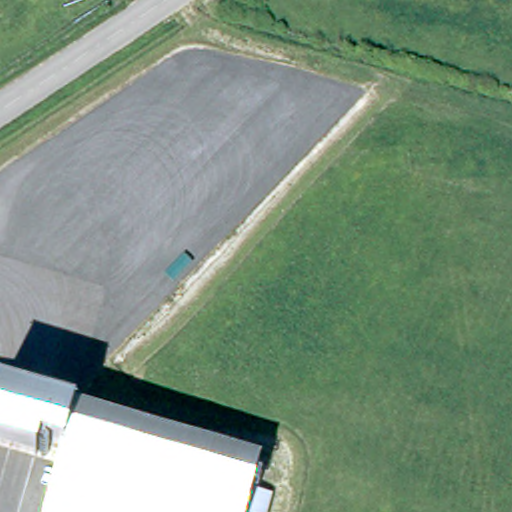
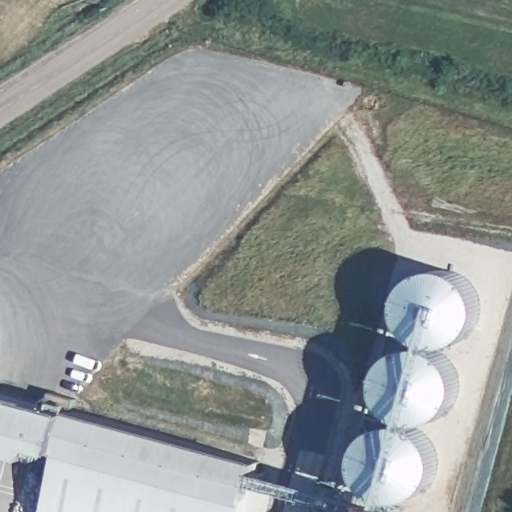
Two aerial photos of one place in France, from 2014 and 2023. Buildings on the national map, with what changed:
new [(373,492),(366,486),(361,473),(361,461),(364,445),(373,433),(384,426),(399,423),(399,419),(393,413),(387,405),(382,392),(382,380),(387,366),(394,356),(405,349),(416,346),(418,340),(411,333),(405,322),(403,310),(404,297),(411,282),(439,268),(449,269),(463,273),(473,283),(479,293),(483,305),(482,317),(477,327),(469,336),(459,343),(449,347),(447,355),(454,364),(459,377),(461,387),(457,402),(449,412),(442,419),(434,423),(426,425),(424,432),(430,439),(436,451),(438,465),(436,477),(429,488),(420,498),(408,502),(402,502),(381,500),(373,492)]
unchanged [(43,402),(33,440),(29,452),(0,444),(0,389),(43,402)]
unchanged [(43,402),(48,390),(71,396),(68,408),(254,461),(247,486),(266,492),(260,512),(241,512),(239,512),(38,512),(55,451),(44,447),(45,443),(33,440),(43,402)]

